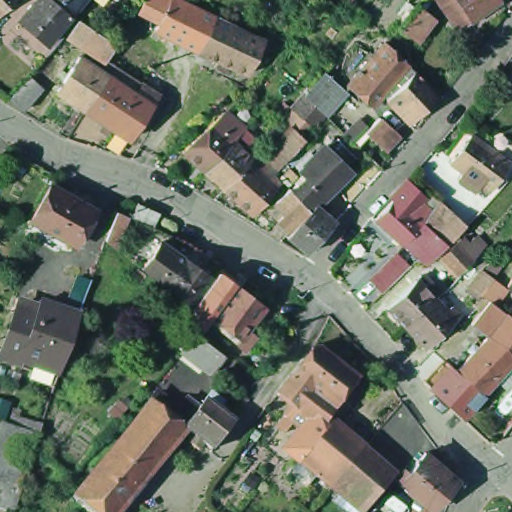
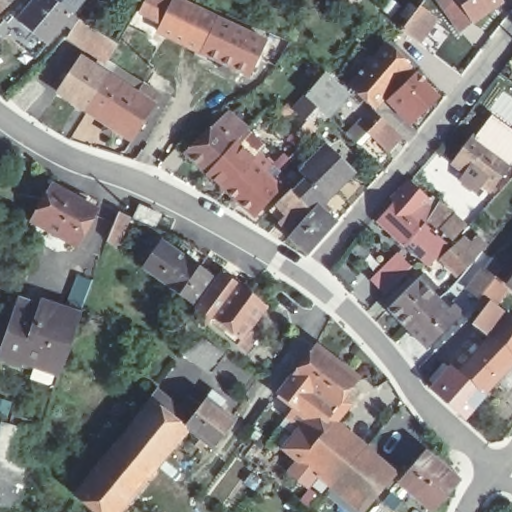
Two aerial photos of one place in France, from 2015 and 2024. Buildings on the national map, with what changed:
unchanged [(21,0),(0,20),(0,0),(21,0)]
unchanged [(92,0),(81,16),(129,49),(111,77),(162,105),(137,146),(56,97),(87,54),(60,36),(51,51),(15,18),(32,0),(92,0)]
unchanged [(134,7),(138,0),(185,0),(209,12),(193,45),(152,25),(156,18),(134,7)]
unchanged [(351,0),(354,0),(353,1),(351,0)]
unchanged [(437,0),(489,0),(467,16),(454,25),(439,2),(437,0)]
unchanged [(435,18),(417,42),(401,30),(420,5),(435,18)]
unchanged [(210,11),(260,35),(244,70),(223,60),(220,67),(209,61),(213,55),(193,45),(209,12),(210,11)]
unchanged [(388,44),(410,65),(375,106),(351,86),(388,44)]
unchanged [(417,71),(439,95),(411,122),(389,100),(417,71)]
unchanged [(41,87),(22,109),(8,97),(27,75),(41,87)]
unchanged [(297,114),(296,112),(295,111),(307,96),(325,75),(344,91),(348,95),(329,116),(316,130),(315,130),(306,140),(288,125),(297,114)]
unchanged [(226,189),(208,172),(185,151),(215,125),(225,116),(229,114),(246,130),(264,145),(260,150),(259,151),(272,164),(266,170),(282,185),(255,215),(226,189)]
unchanged [(392,136),(397,141),(386,151),(368,134),(383,120),(395,133),(392,136)]
unchanged [(496,180),(487,174),(482,180),(465,167),(469,161),(456,152),(476,125),(512,151),(512,158),(496,180)]
unchanged [(289,127),(304,142),(279,169),(274,164),(265,154),(289,127)]
unchanged [(329,231),(307,254),(288,236),(291,233),(279,221),(288,211),(278,201),(290,189),(292,191),(309,181),(302,175),(324,149),(353,173),(322,209),(337,224),(333,227),(329,231)]
unchanged [(427,224),(449,241),(441,251),(431,260),(411,240),(408,242),(384,220),(402,200),(399,196),(414,181),(432,197),(420,212),(419,215),(428,222),(427,224)]
unchanged [(37,219),(56,184),(100,209),(80,244),(37,219)]
unchanged [(451,207),(437,228),(431,222),(443,200),(451,207)]
unchanged [(133,215),(139,203),(162,214),(155,225),(154,227),(139,219),(133,215)]
unchanged [(106,240),(107,237),(117,212),(128,216),(117,244),(113,242),(106,240)]
unchanged [(446,230),(459,215),(465,220),(470,215),(474,220),(470,224),(456,239),(446,230)]
unchanged [(187,302),(139,266),(158,241),(171,251),(179,240),(180,239),(192,247),(194,249),(203,255),(192,272),(195,275),(198,271),(206,277),(202,282),(201,281),(193,293),(196,295),(194,299),(191,297),(187,302)]
unchanged [(461,242),(477,261),(463,275),(446,256),(461,242)]
unchanged [(372,278),(397,254),(410,268),(390,287),(385,292),(372,278)]
unchanged [(422,271),(431,280),(432,278),(436,283),(431,288),(438,295),(416,315),(415,316),(408,323),(389,303),(419,275),(422,271)]
unchanged [(231,343),(233,341),(235,338),(207,317),(205,320),(189,307),(218,272),(232,283),(262,306),(245,330),(252,335),(242,348),(241,350),(231,343)]
unchanged [(512,283),(512,286),(511,285),(512,283)]
unchanged [(456,314),(427,342),(408,323),(415,316),(416,315),(438,295),(456,314)]
unchanged [(484,348),(494,336),(477,323),(494,301),(512,316),(512,369),(490,395),(489,395),(463,371),(464,370),(479,353),(474,350),(479,344),(484,348)]
unchanged [(0,365),(0,346),(10,319),(16,321),(21,307),(35,312),(72,326),(61,356),(55,378),(18,365),(16,370),(0,365)]
unchanged [(226,354),(212,372),(180,346),(194,329),(226,354)]
unchanged [(295,419),(289,415),(295,405),(279,393),(314,346),(334,360),(336,362),(358,378),(340,402),(329,416),(335,421),(330,429),(360,453),(332,486),(301,461),(320,438),(295,419)]
unchanged [(443,387),(437,382),(454,363),(464,370),(463,371),(489,395),(469,417),(440,390),(443,387)]
unchanged [(196,440),(187,433),(156,471),(121,443),(151,405),(157,397),(178,414),(184,407),(185,405),(197,415),(206,404),(212,396),(214,397),(224,405),(218,413),(234,425),(213,453),(206,448),(201,454),(191,446),(196,440)]
unchanged [(44,436),(27,489),(0,480),(0,445),(7,424),(44,436)]
unchanged [(121,443),(156,471),(137,496),(101,468),(121,443)]
unchanged [(427,452),(456,478),(430,508),(401,482),(397,479),(406,469),(410,472),(427,452)]
unchanged [(391,480),(363,512),(362,512),(332,486),(360,453),(391,480)]
unchanged [(124,512),(90,512),(75,500),(101,468),(137,496),(124,512)]

